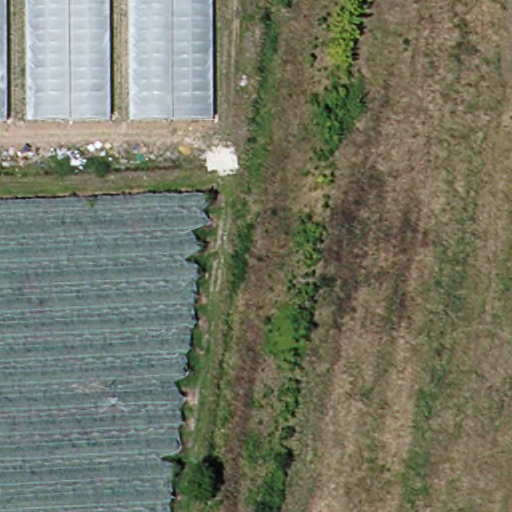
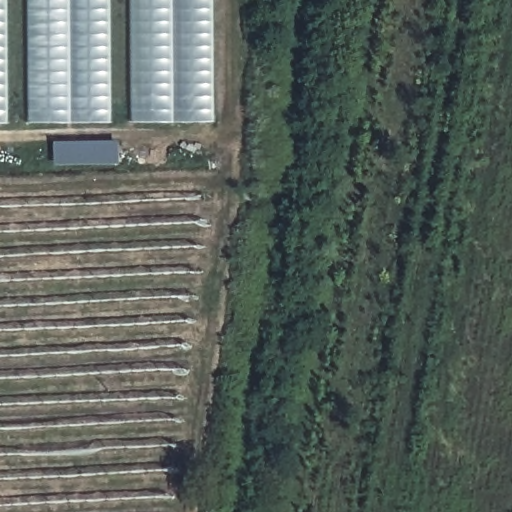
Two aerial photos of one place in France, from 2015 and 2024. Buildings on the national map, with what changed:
unchanged [(15,122),(0,123),(0,0),(15,0),(15,122)]
unchanged [(34,0),(114,0),(114,124),(35,125),(34,0)]
unchanged [(135,0),(220,0),(220,120),(136,120),(135,0)]
new [(119,167),(54,167),(54,143),(119,143),(119,167)]

